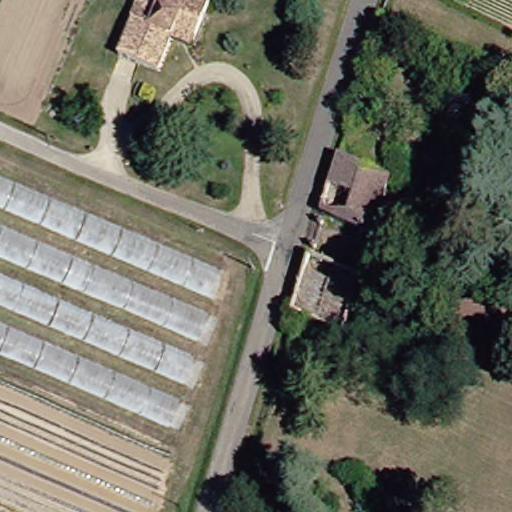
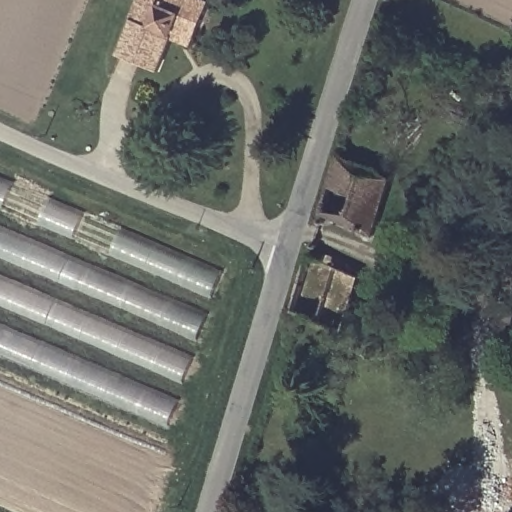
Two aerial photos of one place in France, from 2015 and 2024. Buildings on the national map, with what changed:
unchanged [(153,67),(116,52),(129,18),(123,16),(130,0),(203,0),(204,0),(190,36),(187,44),(165,35),(153,67)]
unchanged [(329,154),(379,175),(362,229),(311,210),(329,154)]
unchanged [(0,200),(0,180),(219,274),(212,291),(0,200)]
unchanged [(0,229),(204,316),(196,334),(0,251),(0,229)]
unchanged [(299,255),(350,270),(331,329),(283,309),(299,255)]
unchanged [(0,300),(0,276),(188,357),(179,377),(0,300)]
unchanged [(0,353),(0,325),(176,400),(166,423),(0,353)]

